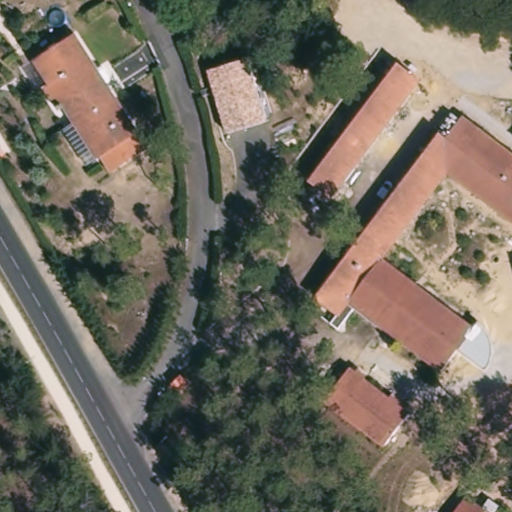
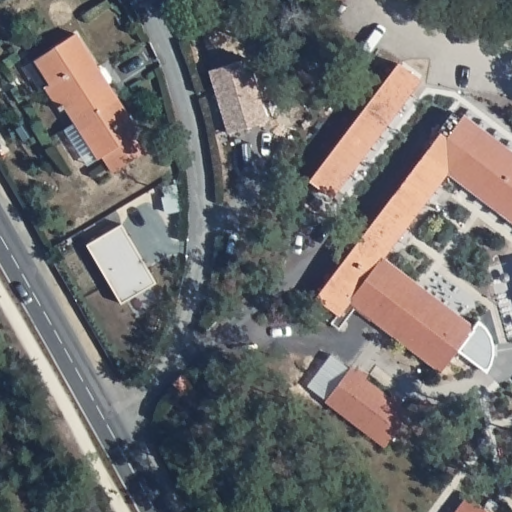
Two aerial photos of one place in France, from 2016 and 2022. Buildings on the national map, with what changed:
unchanged [(62,120),(57,123),(38,94),(43,90),(29,69),(71,41),(111,104),(68,130),(62,120)]
unchanged [(266,121),(227,134),(208,71),(247,59),(266,121)]
unchanged [(419,85),(329,203),(308,187),(397,70),(419,85)]
unchanged [(144,154),(107,177),(97,161),(90,165),(68,130),(111,104),(144,154)]
unchanged [(512,161),(512,229),(445,177),(477,135),(512,161)]
unchanged [(448,375),(443,371),(439,377),(356,313),(339,336),(331,330),(338,320),(314,303),(423,160),(445,177),(379,264),(471,334),(478,322),(492,340),(492,355),(486,372),(464,355),(468,349),(452,370),(448,375)]
new [(119,227),(153,285),(117,306),(83,247),(119,227)]
unchanged [(408,420),(383,452),(323,407),(348,375),(408,420)]
unchanged [(458,512),(465,502),(479,512),(458,512)]

